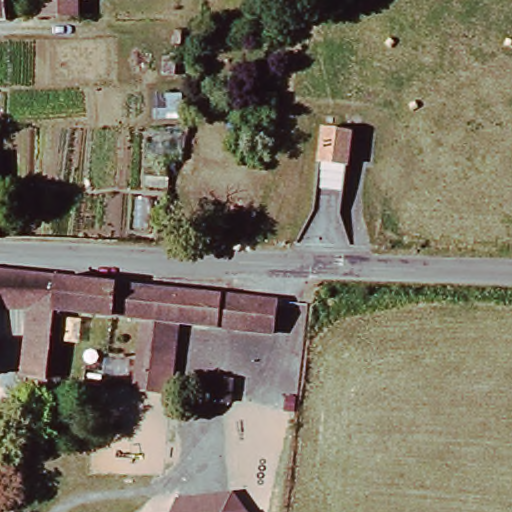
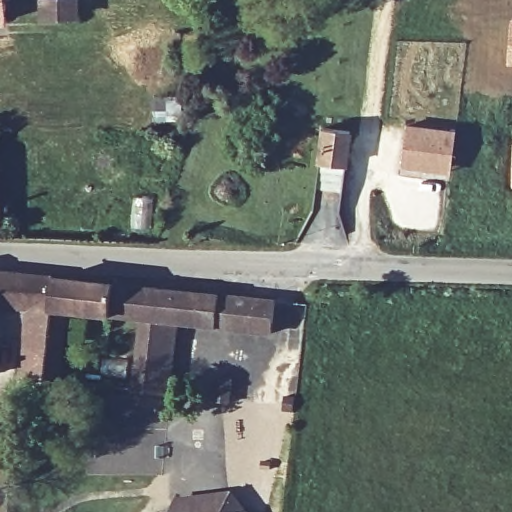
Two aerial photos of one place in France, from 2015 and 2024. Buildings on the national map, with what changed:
unchanged [(0,18),(0,0),(5,0),(6,17),(0,18)]
unchanged [(35,17),(34,1),(61,0),(85,0),(85,9),(71,9),(72,16),(35,17)]
new [(510,18),(512,19),(512,65),(505,64),(510,18)]
new [(451,174),(401,167),(407,124),(456,130),(451,174)]
unchanged [(351,132),(342,211),(313,207),(322,128),(351,132)]
new [(512,140),(512,187),(510,186),(512,140)]
unchanged [(42,375),(19,373),(22,309),(0,308),(0,267),(49,271),(42,375)]
unchanged [(61,308),(53,376),(42,375),(49,271),(236,290),(232,326),(165,318),(152,316),(139,315),(61,308)]
unchanged [(232,326),(236,290),(267,292),(265,327),(232,326)]
unchanged [(165,318),(159,391),(145,388),(132,386),(139,315),(152,316),(165,318)]
unchanged [(215,374),(226,375),(224,399),(211,397),(215,374)]
unchanged [(221,497),(223,491),(232,489),(237,490),(253,512),(211,512),(219,509),(221,497)]
unchanged [(178,498),(192,495),(205,512),(158,512),(161,509),(174,509),(178,498)]

